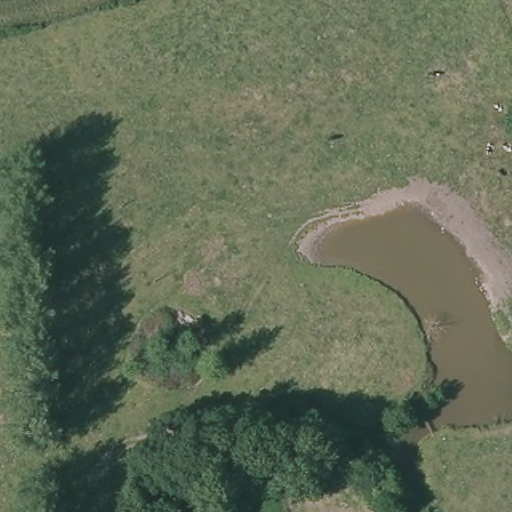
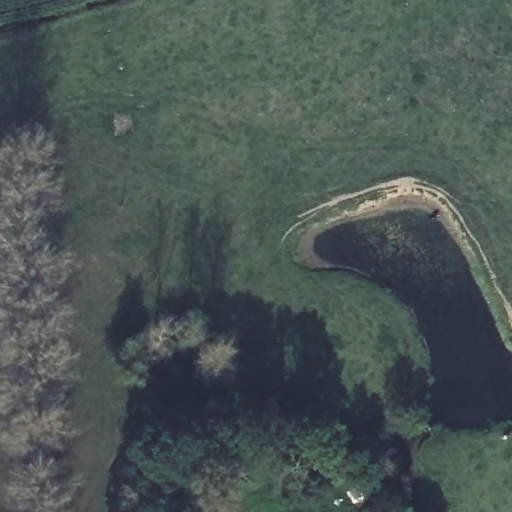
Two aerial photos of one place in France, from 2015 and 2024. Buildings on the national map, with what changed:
[]

